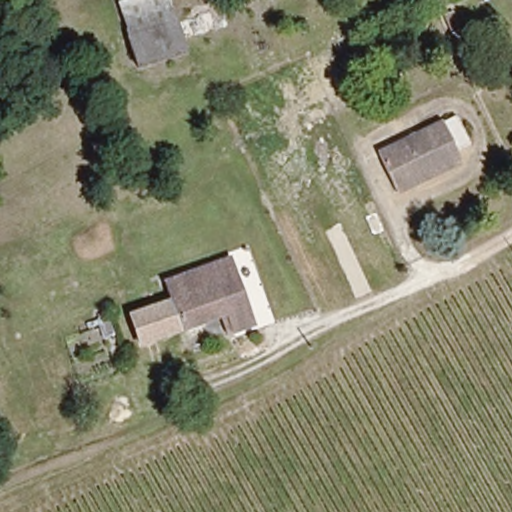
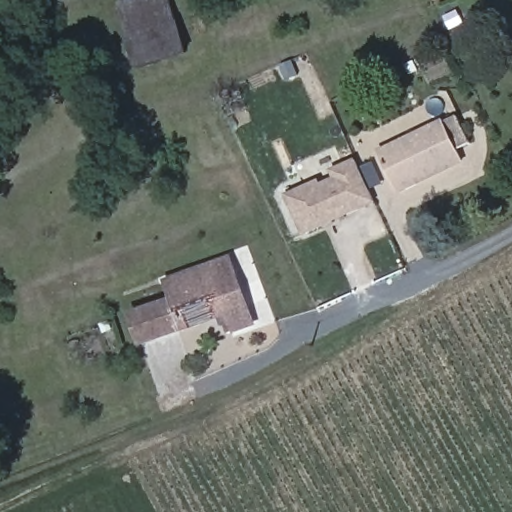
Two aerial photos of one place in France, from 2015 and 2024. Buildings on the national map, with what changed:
unchanged [(151,0),(160,0),(170,30),(122,44),(112,12),(151,0)]
unchanged [(175,46),(179,61),(131,75),(122,44),(170,30),(205,20),(210,35),(175,46)]
demolished [(311,107),(304,89),(318,84),(329,80),(336,98),(311,107)]
unchanged [(397,189),(377,150),(455,112),(468,140),(457,146),(462,157),(397,189)]
new [(304,236),(286,195),(320,180),(322,184),(333,179),(330,171),(356,159),(376,204),(304,236)]
unchanged [(167,296),(161,277),(224,252),(242,300),(237,301),(246,322),(230,328),(222,307),(180,323),(137,340),(126,312),(167,296)]

